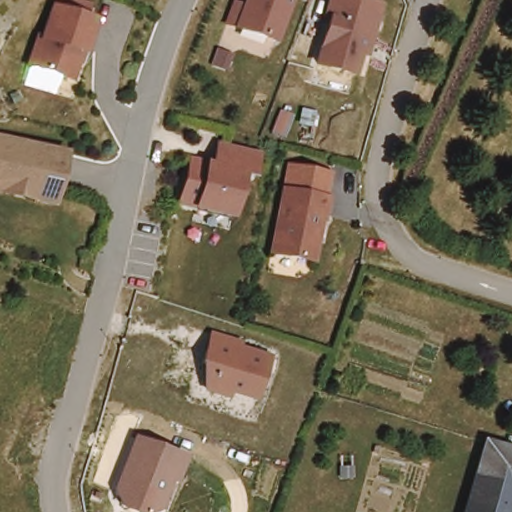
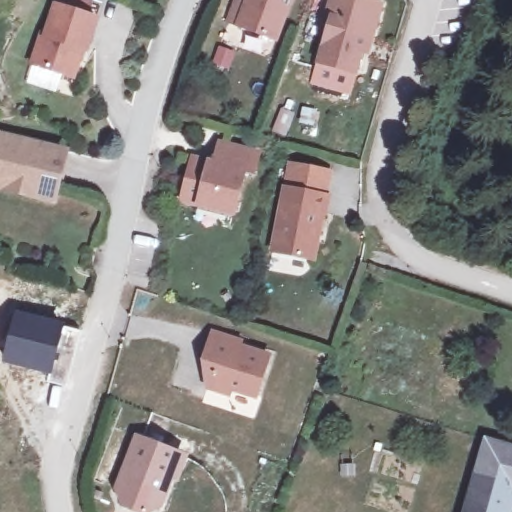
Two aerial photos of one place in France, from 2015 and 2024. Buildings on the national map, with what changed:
unchanged [(92,53),(90,57),(87,56),(77,85),(36,70),(46,41),(50,42),(52,37),(60,11),(65,0),(68,0),(94,9),(89,21),(101,26),(92,53)]
unchanged [(279,40),(242,25),(252,0),(295,0),(279,40)]
unchanged [(380,12),(370,47),(364,45),(354,78),(317,67),(331,23),(340,26),(347,1),(380,12)]
unchanged [(27,185),(0,178),(0,138),(62,154),(50,200),(25,194),(27,185)]
unchanged [(250,191),(240,188),(230,228),(179,214),(190,172),(195,152),(217,158),(256,169),(250,191)]
unchanged [(335,172),(330,196),(333,197),(330,213),(327,213),(317,258),(277,250),(295,164),(335,172)]
unchanged [(92,252),(88,269),(77,266),(81,249),(92,252)]
new [(15,309),(65,323),(52,375),(0,362),(15,309)]
unchanged [(235,343),(233,347),(262,357),(249,396),(225,388),(222,394),(202,387),(209,365),(198,362),(207,334),(235,343)]
unchanged [(485,437),(512,447),(512,491),(511,490),(505,512),(458,512),(480,436),(485,437)]
unchanged [(153,508),(145,512),(132,512),(116,505),(110,491),(130,437),(175,454),(153,508)]
unchanged [(357,471),(357,481),(347,481),(346,472),(357,471)]

